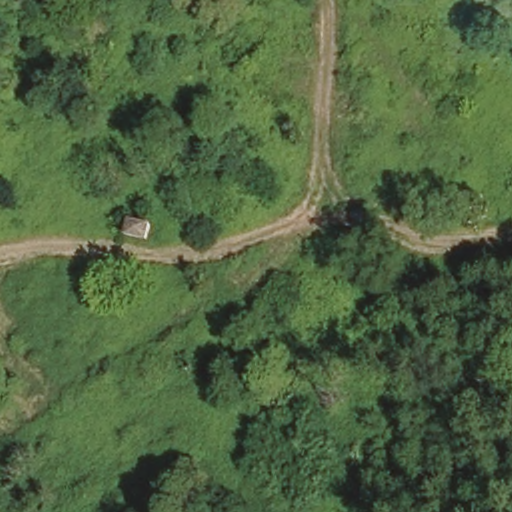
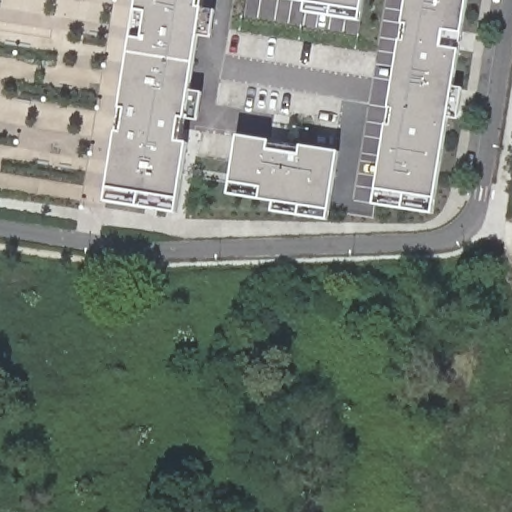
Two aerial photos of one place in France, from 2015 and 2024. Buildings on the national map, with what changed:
new [(138,0),(205,0),(186,121),(181,120),(178,142),(189,144),(177,214),(106,202),(138,0)]
new [(360,21),(305,12),(306,3),(291,0),(363,0),(360,21)]
new [(407,0),(468,0),(433,214),(374,205),(407,0)]
new [(260,200),(228,196),(230,184),(237,135),(271,141),(301,146),(340,152),(330,212),(329,224),(270,215),(272,203),(260,200)]
demolished [(126,236),(130,220),(151,226),(147,241),(126,236)]

